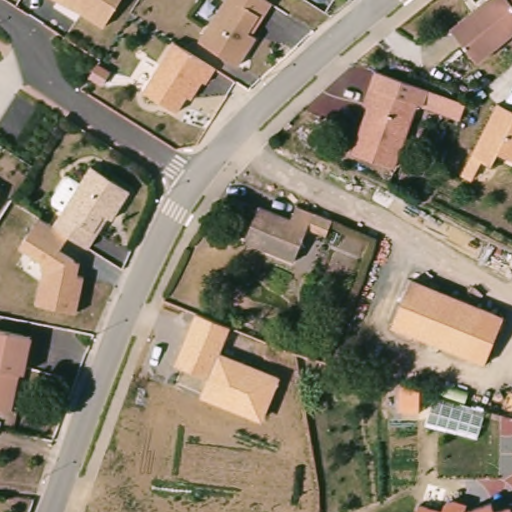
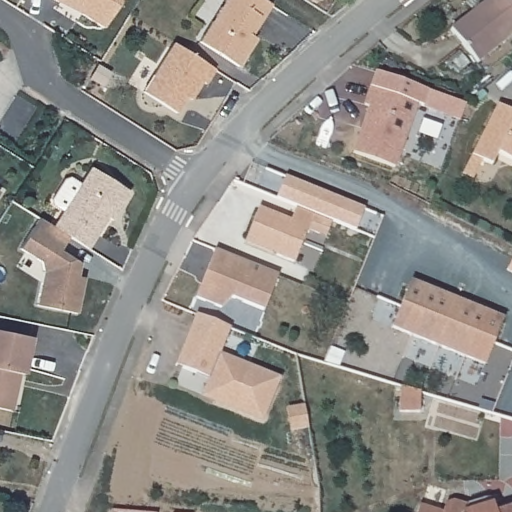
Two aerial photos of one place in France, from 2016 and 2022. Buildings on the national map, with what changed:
unchanged [(60,0),(119,0),(103,26),(60,0)]
unchanged [(265,15),(255,33),(258,35),(241,62),(201,37),(225,0),(267,0),(272,3),(265,15)]
unchanged [(500,0),(510,0),(512,3),(512,33),(463,71),(438,36),(487,0),(492,0),(495,4),(500,0)]
unchanged [(189,97),(179,114),(145,92),(176,44),(217,70),(208,85),(205,83),(193,100),(189,97)]
unchanged [(385,181),(343,166),(360,118),(354,117),(365,83),(418,103),(453,116),(449,130),(413,117),(408,115),(385,181)]
unchanged [(510,112),(512,109),(512,138),(501,133),(486,163),(478,159),(469,177),(457,171),(466,153),(492,102),(510,112)]
unchanged [(90,247),(69,235),(60,249),(79,262),(78,277),(81,278),(75,311),(36,303),(42,269),(39,259),(20,246),(39,216),(52,224),(90,166),(129,192),(90,247)]
unchanged [(288,219),(295,204),(333,221),(327,236),(306,229),(293,261),(275,254),(277,249),(247,236),(260,206),(288,219)]
new [(221,252),(284,278),(269,314),(237,300),(226,311),(204,301),(201,300),(215,268),(221,252)]
unchanged [(498,313),(480,360),(390,325),(406,281),(498,313)]
unchanged [(232,324),(221,352),(281,375),(262,421),(200,397),(207,377),(176,363),(197,311),(232,324)]
unchanged [(23,376),(15,375),(9,410),(0,408),(0,329),(31,335),(23,376)]
unchanged [(410,501),(435,508),(437,500),(442,499),(457,504),(455,510),(483,505),(485,512),(407,512),(410,501)]
unchanged [(501,511),(500,504),(512,501),(512,512),(498,512),(501,511)]

